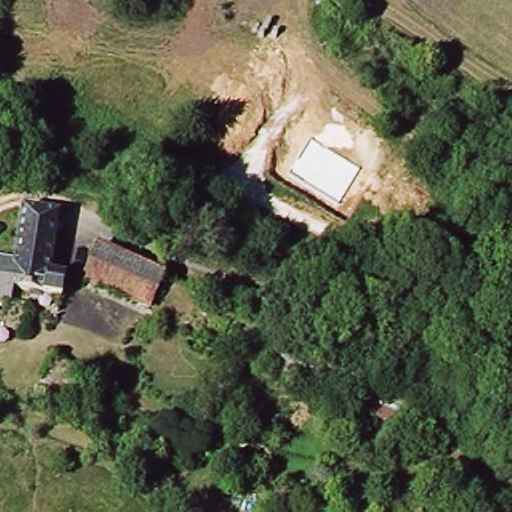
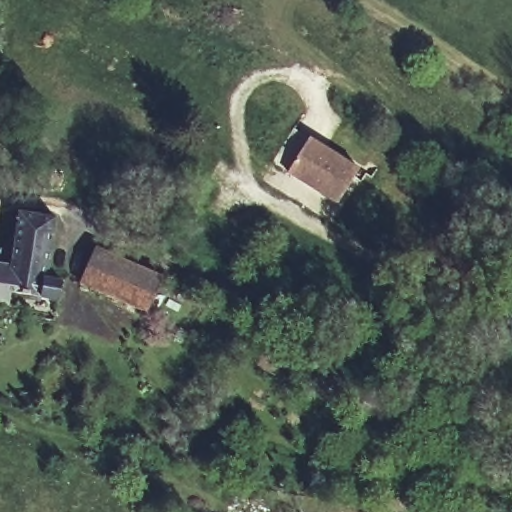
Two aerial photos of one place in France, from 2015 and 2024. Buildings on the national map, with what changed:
new [(360,169),(336,205),(286,174),(310,138),(360,169)]
unchanged [(16,324),(0,320),(0,263),(7,264),(18,209),(51,215),(40,274),(58,277),(53,297),(7,288),(4,300),(21,305),(16,324)]
unchanged [(160,283),(153,296),(206,321),(197,343),(150,322),(151,318),(79,286),(93,254),(160,283)]
unchanged [(257,369),(270,343),(452,430),(439,457),(257,369)]
unchanged [(36,389),(56,356),(83,372),(64,405),(36,389)]

